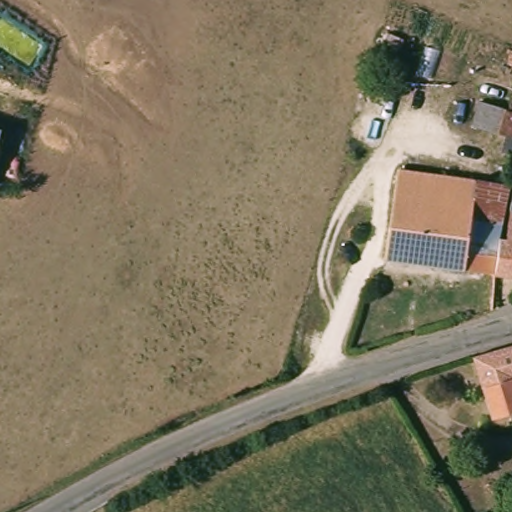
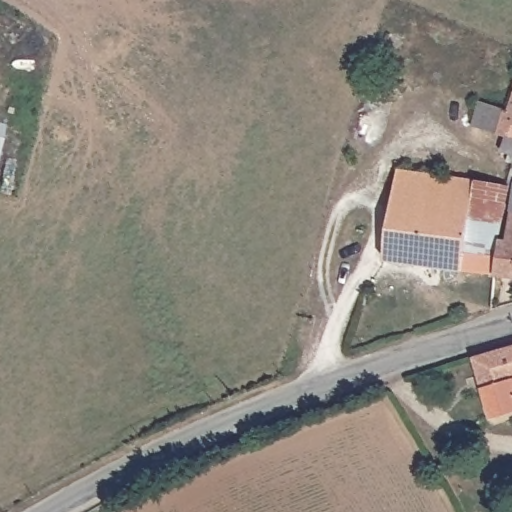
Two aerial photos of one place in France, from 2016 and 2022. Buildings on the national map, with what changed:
unchanged [(495,104),(512,110),(512,136),(487,128),(495,104)]
unchanged [(0,146),(0,131),(4,132),(0,146)]
unchanged [(402,178),(480,186),(478,206),(471,275),(393,267),(402,178)]
unchanged [(471,275),(478,206),(512,208),(512,236),(506,278),(471,275)]
unchanged [(506,278),(512,236),(512,279),(506,278)]
unchanged [(495,423),(480,361),(512,350),(512,420),(495,423)]

